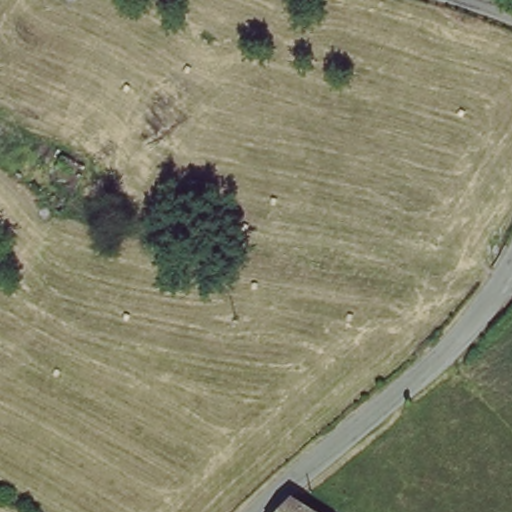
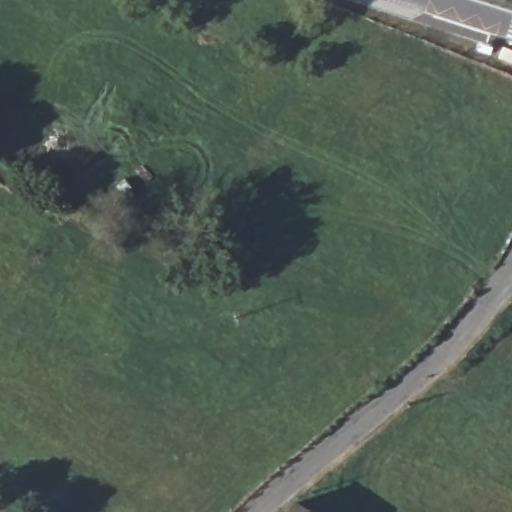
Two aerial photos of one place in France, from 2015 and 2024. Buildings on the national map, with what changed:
unchanged [(293,505),(297,501),(315,512),(286,512),(293,505)]

